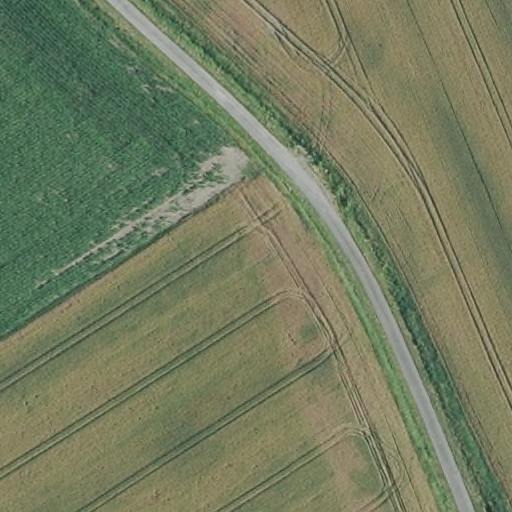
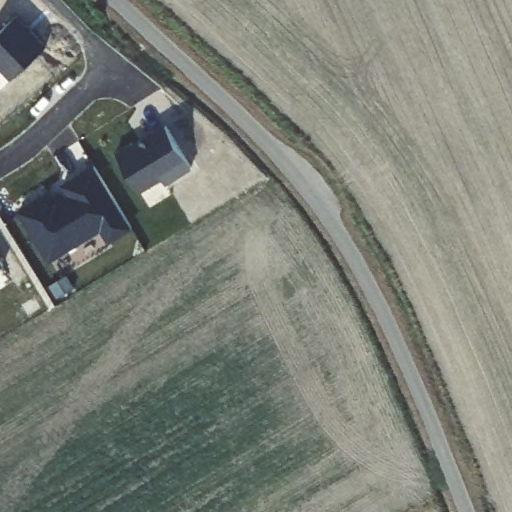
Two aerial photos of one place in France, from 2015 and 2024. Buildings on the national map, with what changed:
new [(47,45),(10,80),(0,69),(0,32),(17,15),(47,45)]
new [(162,179),(140,191),(117,154),(166,124),(192,168),(166,185),(162,179)]
new [(102,230),(50,261),(20,212),(52,191),(57,199),(65,193),(61,184),(92,166),(131,229),(110,243),(102,230)]
new [(5,265),(0,269),(0,257),(5,265)]

